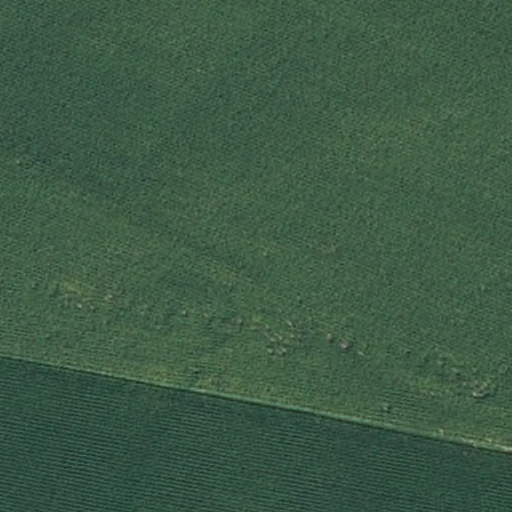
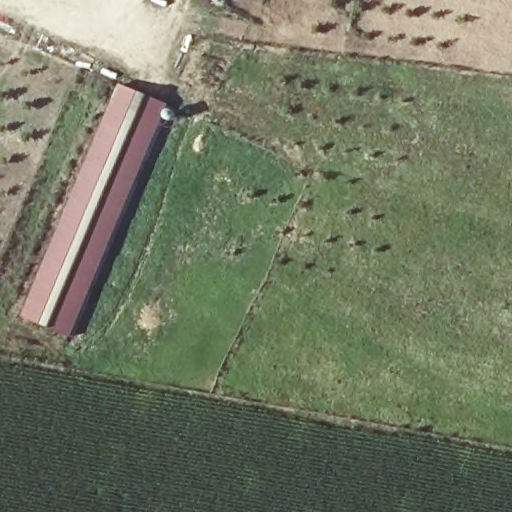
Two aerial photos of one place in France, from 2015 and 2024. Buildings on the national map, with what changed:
new [(200,0),(213,0),(212,5),(200,0)]
new [(169,105),(71,338),(23,317),(119,85),(169,105)]

